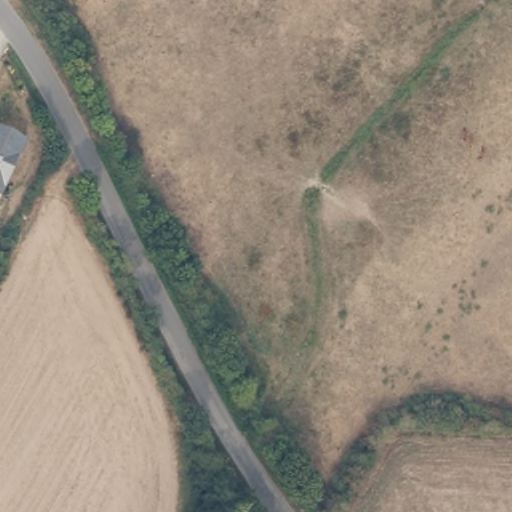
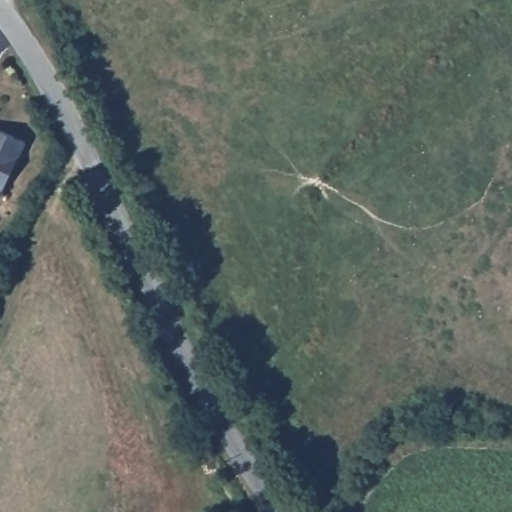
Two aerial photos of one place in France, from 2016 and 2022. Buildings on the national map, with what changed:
unchanged [(25,141),(0,199),(0,131),(25,141)]

